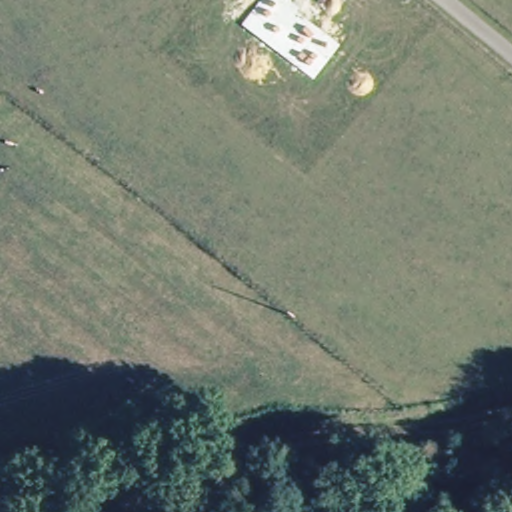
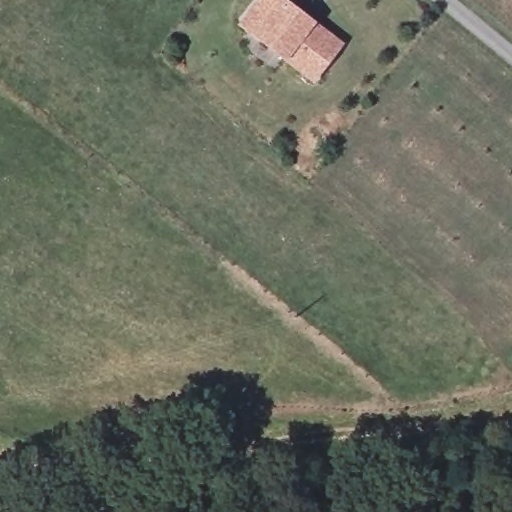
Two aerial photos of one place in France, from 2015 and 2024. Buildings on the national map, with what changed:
new [(312,84),(284,61),(252,34),(237,24),(256,0),(285,0),(285,1),(341,41),(312,84)]

